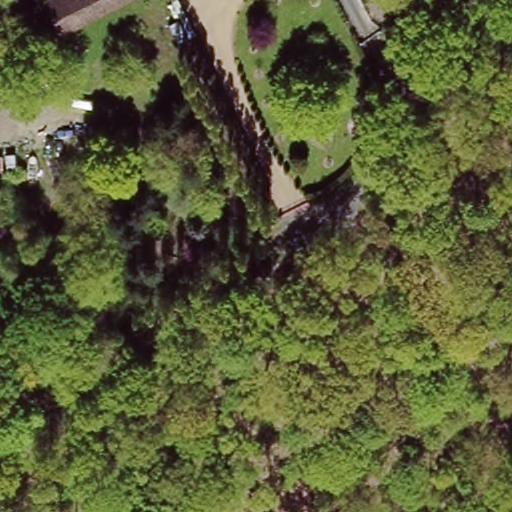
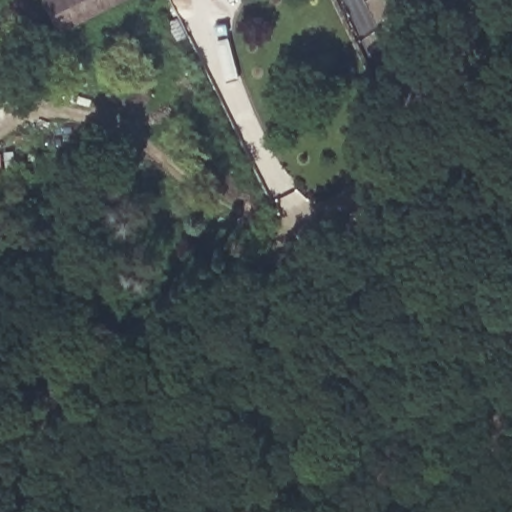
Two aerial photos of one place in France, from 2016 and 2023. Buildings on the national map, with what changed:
unchanged [(55,34),(40,0),(130,0),(55,34)]

